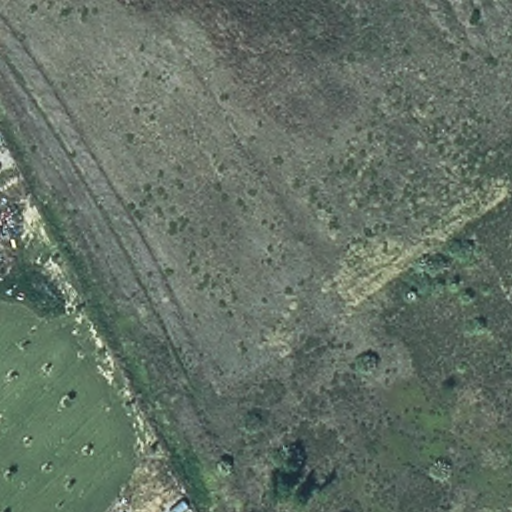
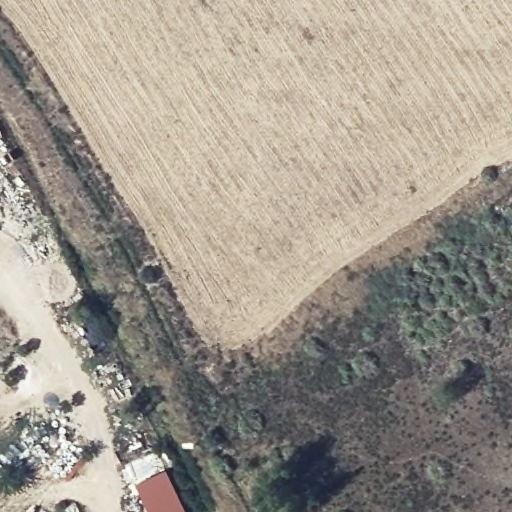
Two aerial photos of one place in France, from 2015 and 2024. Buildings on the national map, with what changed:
new [(151,512),(137,483),(168,470),(188,512),(151,512)]

